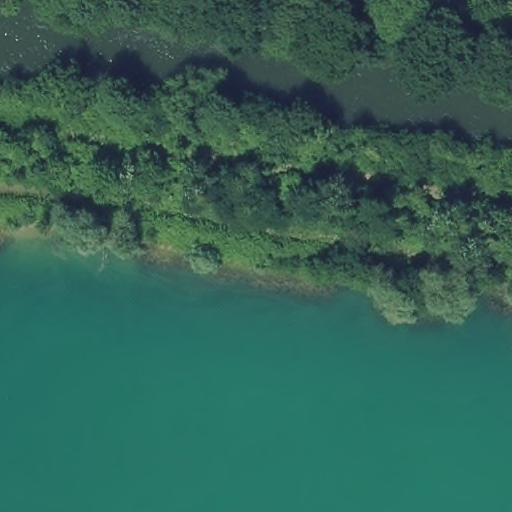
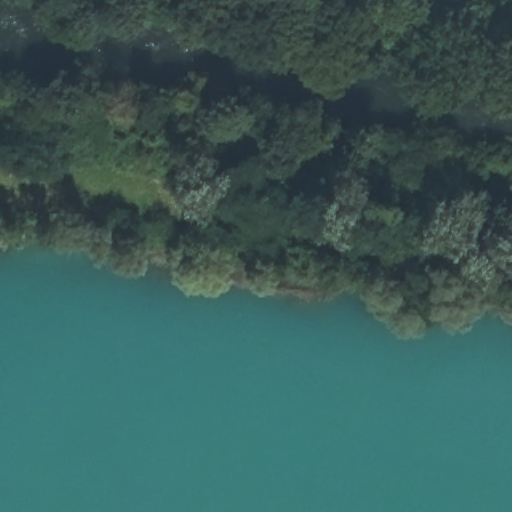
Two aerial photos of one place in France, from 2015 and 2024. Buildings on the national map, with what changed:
[]

